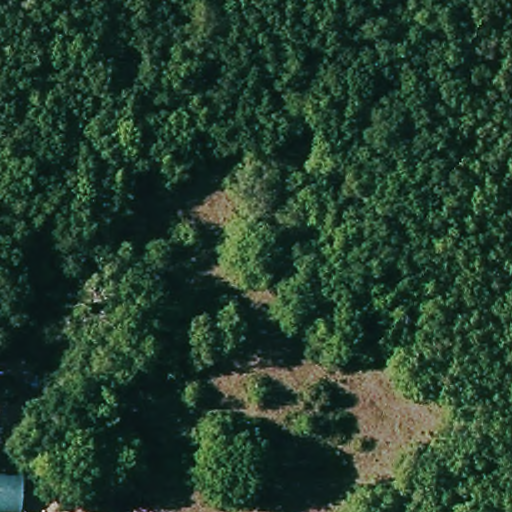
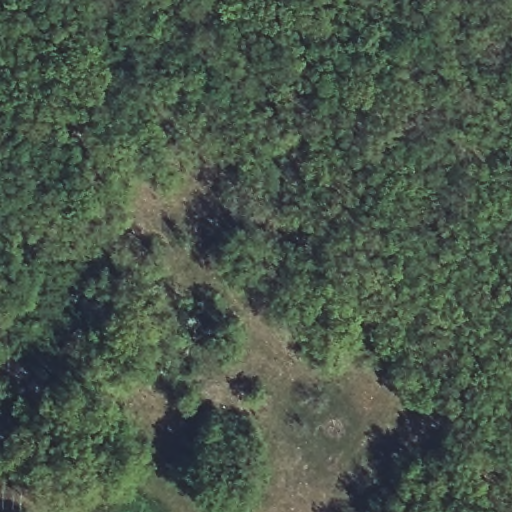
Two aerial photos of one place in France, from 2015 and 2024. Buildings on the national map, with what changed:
demolished [(0,472),(25,473),(24,512),(23,512),(0,510),(0,472)]

